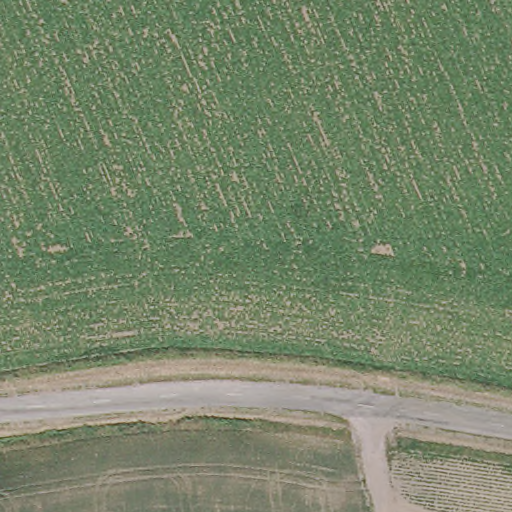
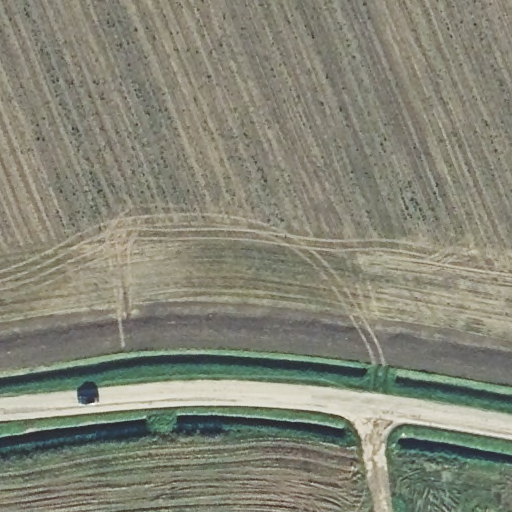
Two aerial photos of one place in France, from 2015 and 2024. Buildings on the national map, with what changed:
[]

